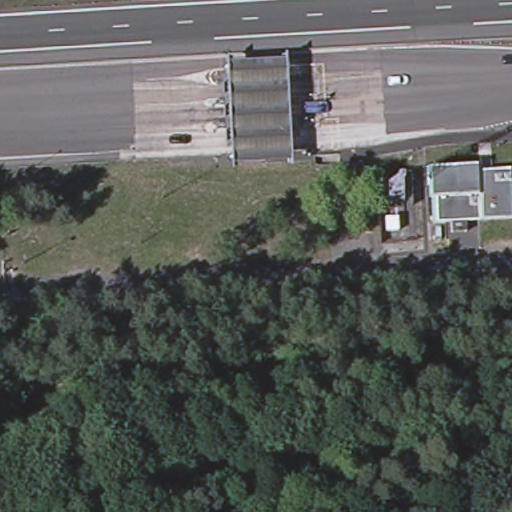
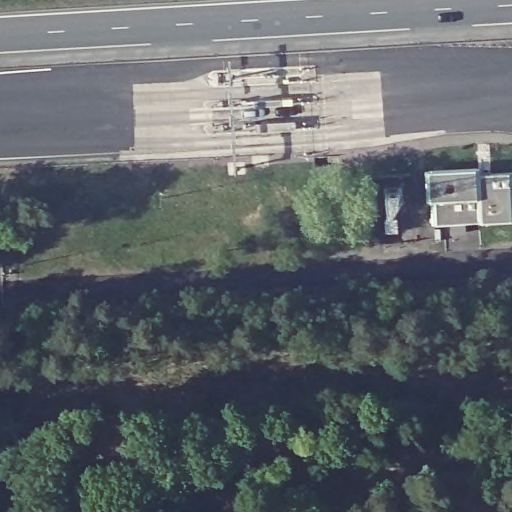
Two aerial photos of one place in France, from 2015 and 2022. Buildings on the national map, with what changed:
unchanged [(283,61),(287,155),(224,157),(221,63),(283,61)]
unchanged [(512,170),(512,218),(435,222),(432,174),(512,170)]

